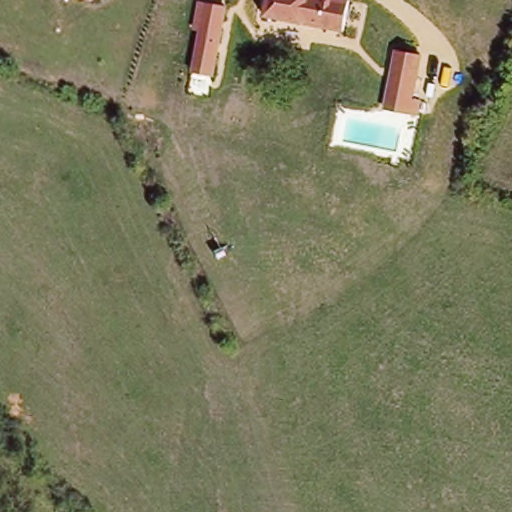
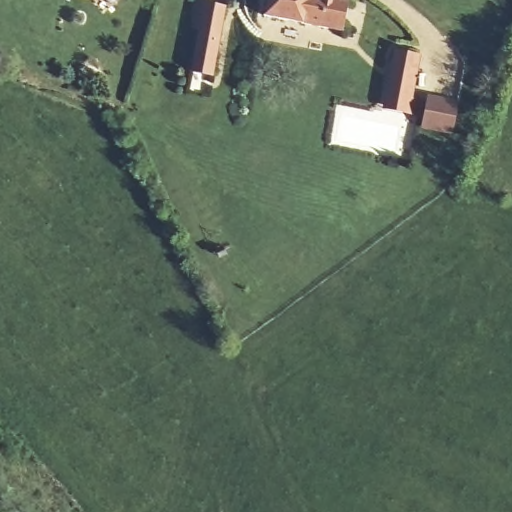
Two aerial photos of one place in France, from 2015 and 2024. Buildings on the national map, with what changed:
unchanged [(194,71),(201,32),(194,31),(199,0),(227,5),(214,77),(194,71)]
unchanged [(343,32),(265,17),(268,0),(348,0),(343,32)]
unchanged [(421,55),(413,97),(420,99),(417,115),(382,110),(393,50),(421,55)]
new [(428,99),(457,105),(450,134),(421,127),(428,99)]

